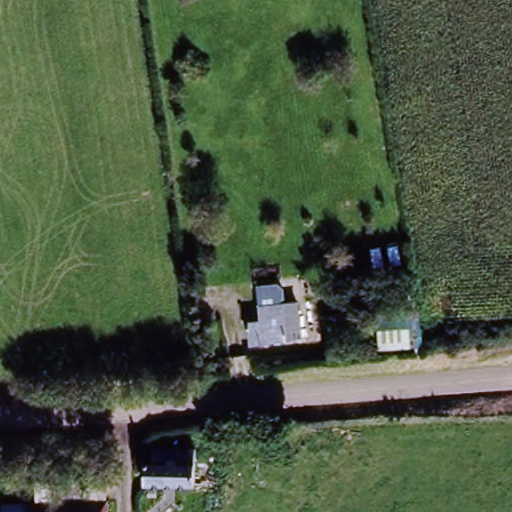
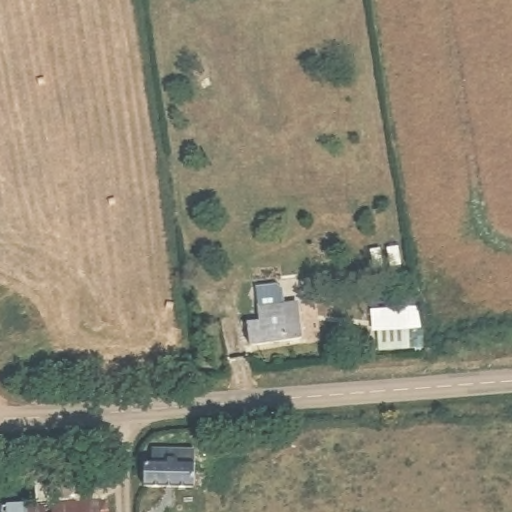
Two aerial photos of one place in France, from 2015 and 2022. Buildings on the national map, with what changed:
unchanged [(302,333),(264,340),(249,343),(245,321),(299,312),(302,333)]
unchanged [(410,323),(412,348),(377,350),(376,328),(410,323)]
unchanged [(182,325),(183,352),(164,355),(160,330),(182,325)]
unchanged [(146,458),(150,457),(150,445),(193,445),(192,478),(147,482),(146,458)]
unchanged [(106,500),(42,503),(40,482),(105,479),(106,500)]
unchanged [(5,512),(5,505),(42,503),(106,500),(107,512),(5,512)]

